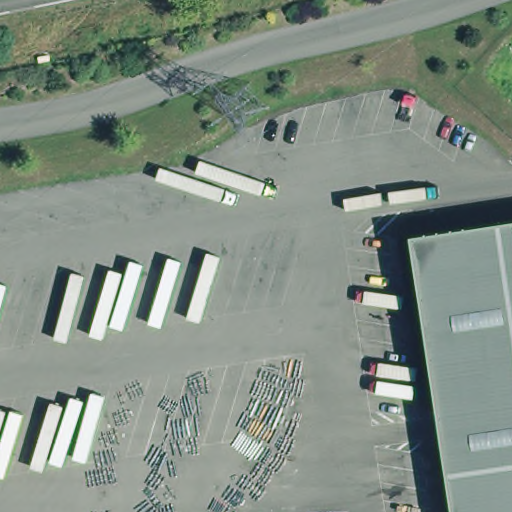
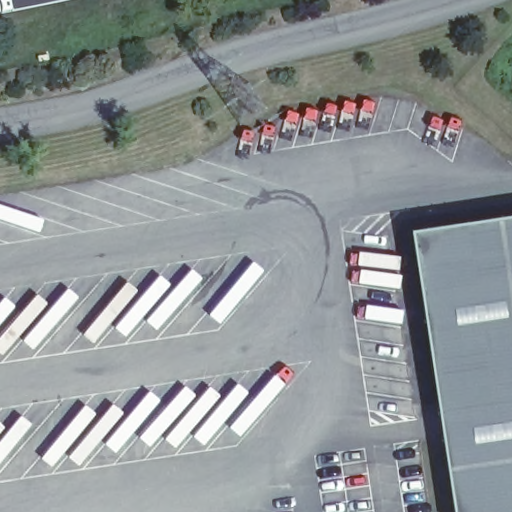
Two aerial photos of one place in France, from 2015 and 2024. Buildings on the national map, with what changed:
unchanged [(459,512),(416,236),(512,223),(512,512),(459,512)]

